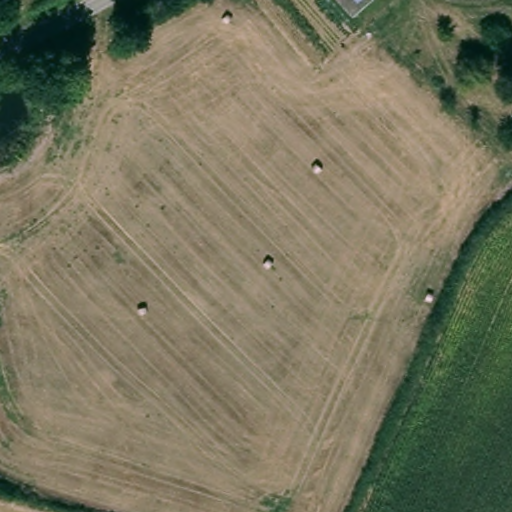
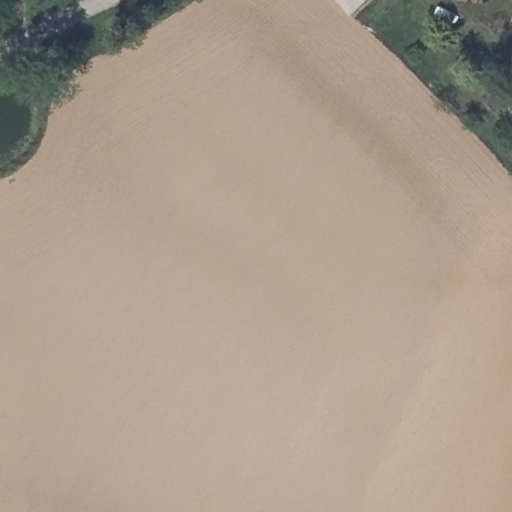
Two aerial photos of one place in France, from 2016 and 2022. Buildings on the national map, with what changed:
unchanged [(349,7),(343,0),(356,0),(349,7)]

